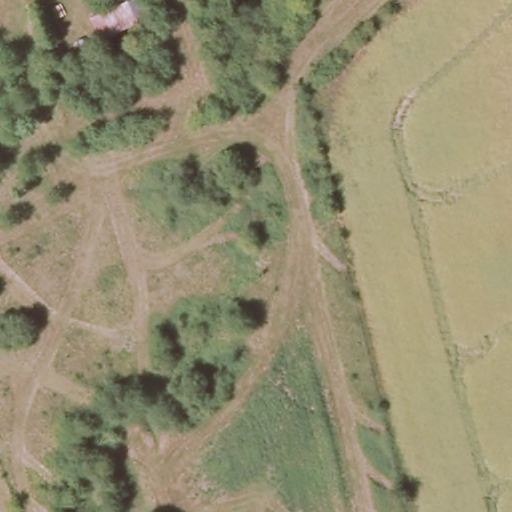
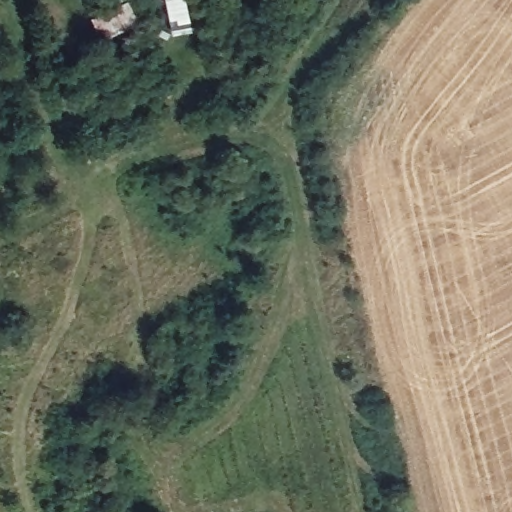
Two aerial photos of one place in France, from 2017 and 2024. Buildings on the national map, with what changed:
unchanged [(120,40),(106,21),(136,0),(139,0),(151,16),(120,40)]

